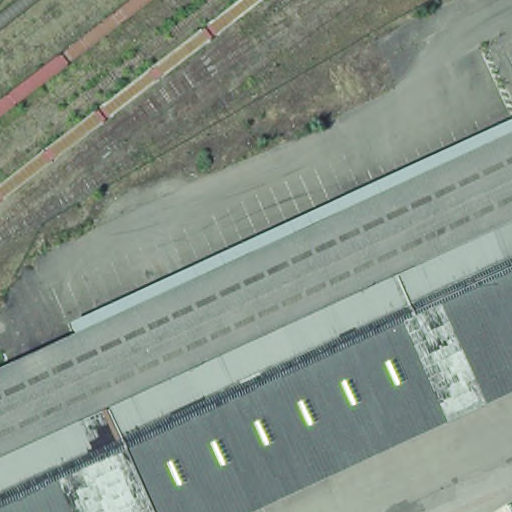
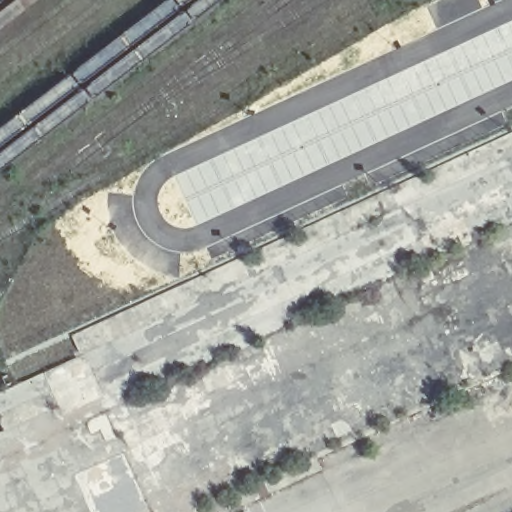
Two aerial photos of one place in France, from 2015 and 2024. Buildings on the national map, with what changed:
demolished [(512,130),(512,219),(0,460),(0,371),(512,130)]
demolished [(512,219),(512,363),(195,512),(0,512),(0,460),(512,219)]

